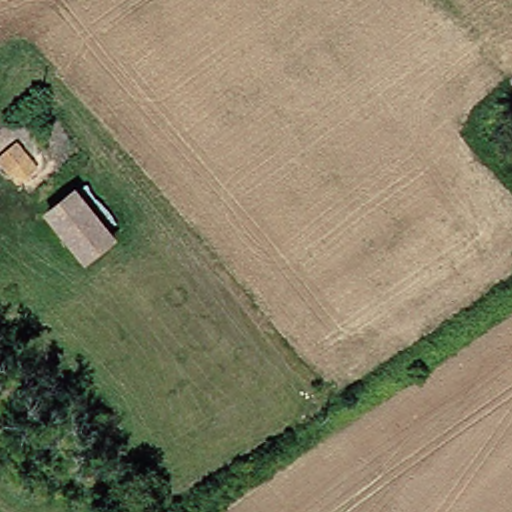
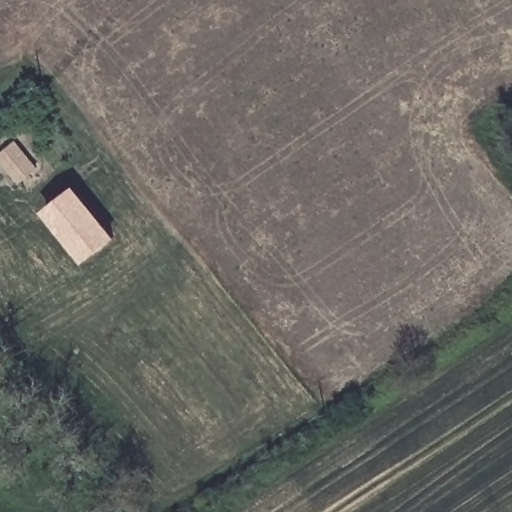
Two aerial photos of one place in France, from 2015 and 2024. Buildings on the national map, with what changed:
unchanged [(15,161),(0,173),(0,150),(3,148),(15,161)]
unchanged [(104,239),(78,261),(44,220),(41,216),(66,195),(71,200),(104,239)]

